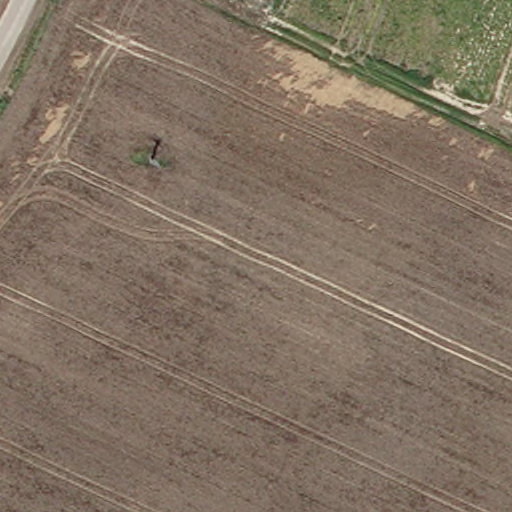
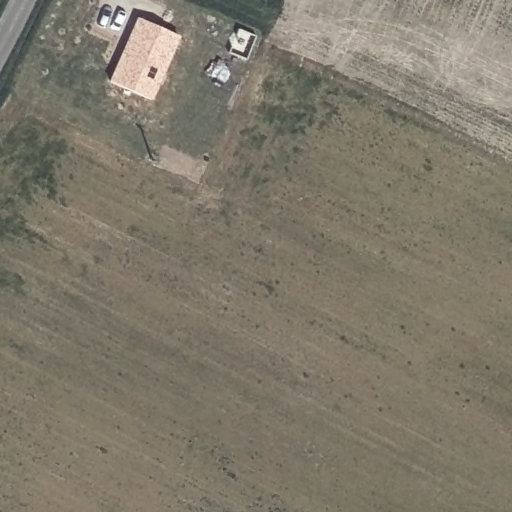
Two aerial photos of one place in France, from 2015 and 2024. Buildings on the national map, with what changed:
new [(138,20),(176,36),(148,99),(111,82),(138,20)]

